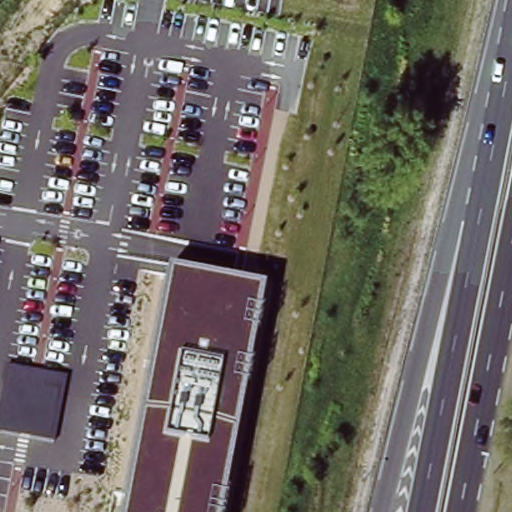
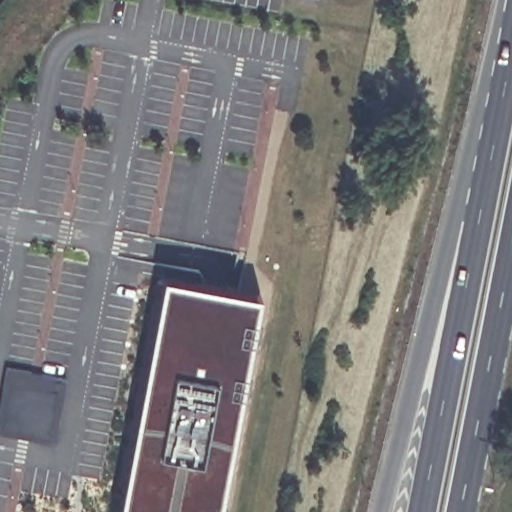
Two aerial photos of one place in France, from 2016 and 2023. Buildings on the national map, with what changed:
unchanged [(165,273),(261,291),(219,512),(119,512),(165,273)]
unchanged [(0,432),(0,393),(5,364),(66,377),(53,443),(0,432)]

